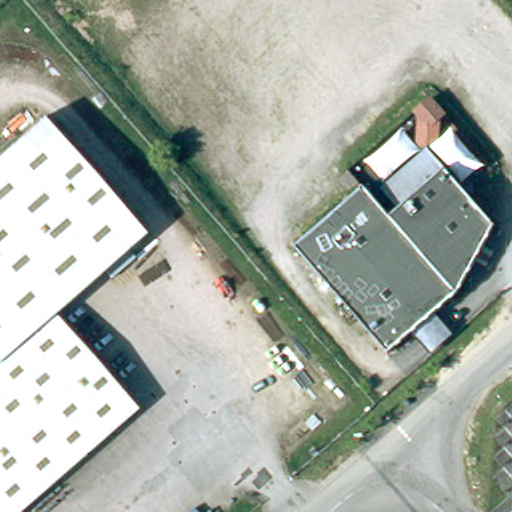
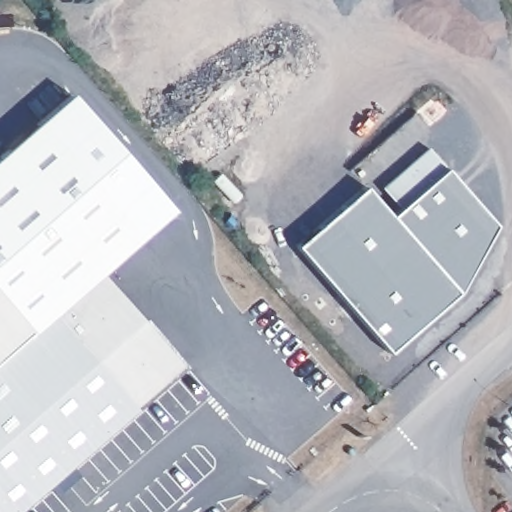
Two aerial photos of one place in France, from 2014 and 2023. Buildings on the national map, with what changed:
new [(46,123),(74,96),(176,210),(146,239),(46,123)]
unchanged [(46,123),(146,239),(129,255),(14,151),(46,123)]
unchanged [(419,340),(415,336),(391,357),(297,250),(366,189),(392,218),(400,210),(382,190),(428,150),(496,226),(459,294),(461,296),(436,317),(440,320),(419,340)]
unchanged [(129,255),(56,318),(137,413),(25,512),(0,512),(0,163),(14,151),(129,255)]
new [(56,318),(105,275),(183,366),(137,413),(56,318)]

